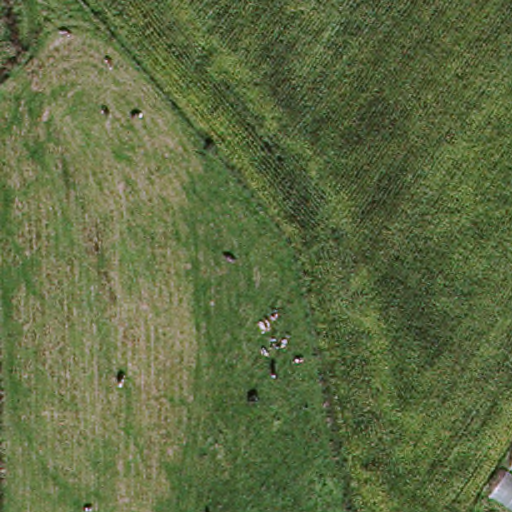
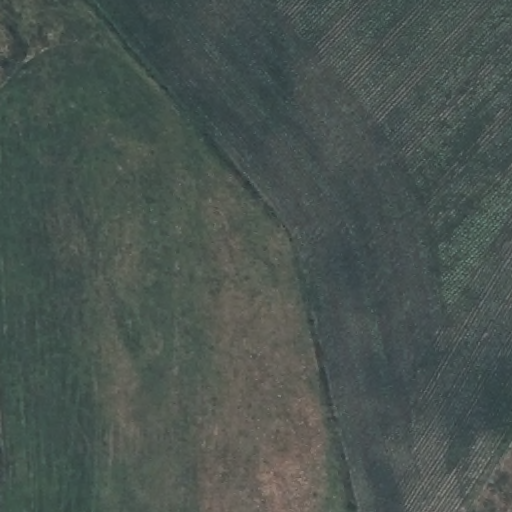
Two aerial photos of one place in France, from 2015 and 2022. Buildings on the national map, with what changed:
demolished [(508,462),(512,457),(512,464),(508,462)]
demolished [(512,464),(512,512),(478,512),(512,464)]

